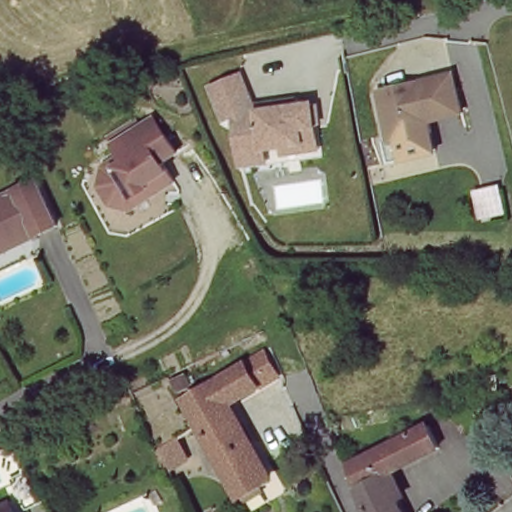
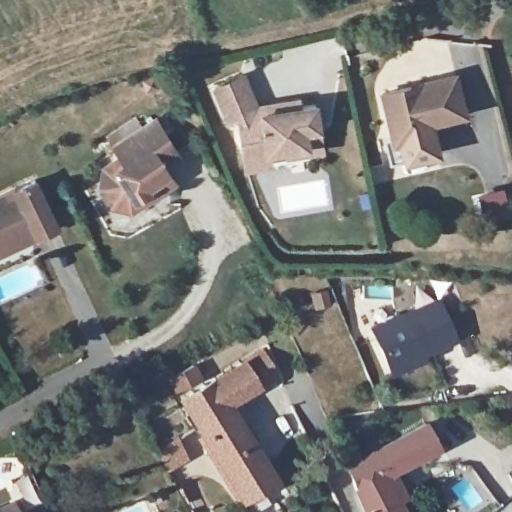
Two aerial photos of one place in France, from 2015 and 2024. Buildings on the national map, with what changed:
unchanged [(464,109),(430,116),(432,127),(394,136),(382,87),(455,70),(464,109)]
unchanged [(250,169),(248,157),(244,120),(234,125),(219,92),(248,79),(262,110),(274,108),(305,105),(305,111),(321,109),(324,132),(327,155),(291,159),(291,152),(273,154),(275,166),(250,169)]
unchanged [(129,206),(109,202),(98,184),(101,164),(118,153),(111,142),(152,116),(174,150),(159,160),(165,169),(171,179),(129,206)]
unchanged [(437,147),(390,159),(384,138),(394,136),(432,127),(437,147)]
unchanged [(34,177),(55,222),(35,232),(0,249),(0,194),(34,177)]
new [(389,375),(371,326),(439,298),(456,341),(423,354),(426,360),(389,375)]
unchanged [(178,397),(248,361),(264,395),(238,407),(231,396),(189,423),(178,397)]
unchanged [(238,407),(282,479),(236,502),(189,423),(231,396),(238,407)]
unchanged [(409,427),(422,451),(386,471),(408,512),(371,512),(366,503),(349,460),(409,427)]
unchanged [(170,431),(180,452),(158,462),(148,441),(170,431)]
unchanged [(14,502),(18,512),(0,512),(0,509),(14,502)]

